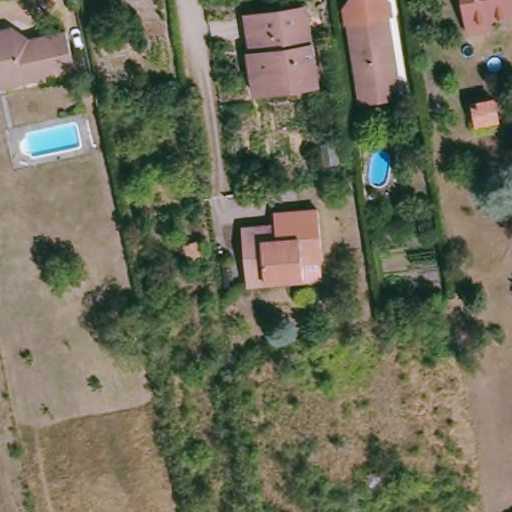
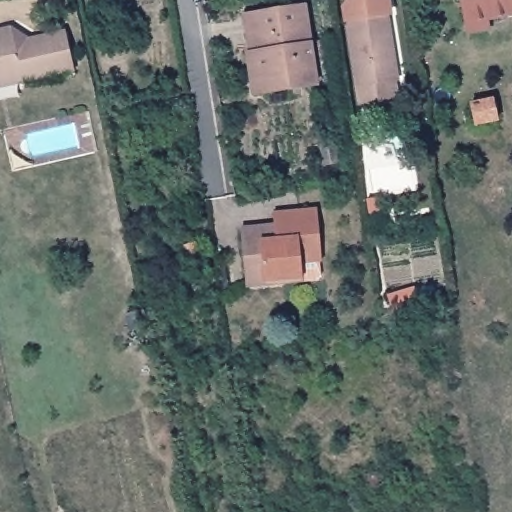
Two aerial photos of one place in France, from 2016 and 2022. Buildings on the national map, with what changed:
unchanged [(399,2),(403,23),(399,24),(404,58),(399,58),(404,89),(365,96),(354,31),(351,12),(361,1),(368,0),(394,0),(399,2)]
unchanged [(484,22),(462,25),(457,0),(512,0),(512,17),(484,22)]
unchanged [(256,78),(252,57),(259,55),(256,37),(253,38),(249,16),(305,7),(319,88),(264,97),(259,98),(256,78)]
unchanged [(35,38),(71,30),(80,71),(26,82),(24,77),(8,81),(0,76),(0,32),(11,29),(35,38)]
unchanged [(500,120),(479,123),(476,107),(497,103),(500,120)]
unchanged [(319,253),(316,254),(318,269),(319,273),(314,274),(301,275),(300,270),(299,270),(261,274),(260,269),(244,271),(239,223),(240,223),(255,221),(274,219),(281,218),(282,218),(281,206),(314,203),(319,253)]

